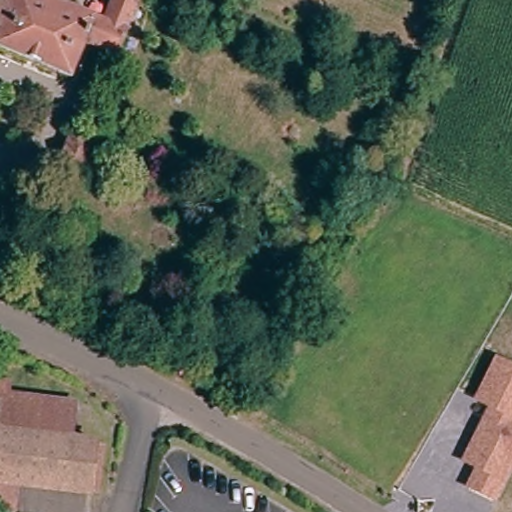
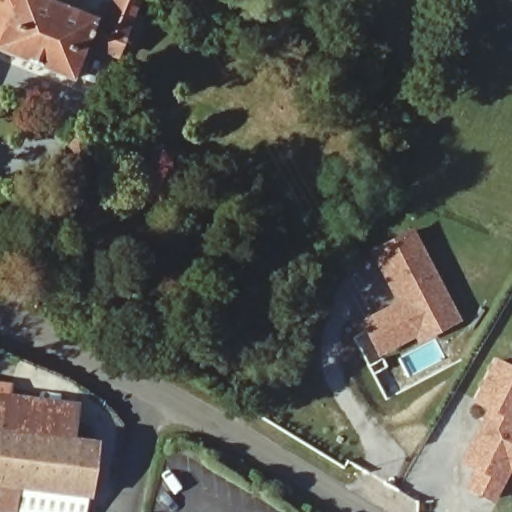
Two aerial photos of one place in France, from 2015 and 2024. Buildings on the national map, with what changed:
unchanged [(135,3),(115,56),(84,43),(71,80),(0,50),(0,0),(46,0),(104,24),(114,0),(128,0),(135,3)]
unchanged [(58,176),(69,146),(77,149),(91,155),(80,186),(58,176)]
new [(465,320),(420,344),(417,338),(382,358),(360,319),(396,303),(368,250),(415,226),(465,320)]
unchanged [(462,463),(486,408),(475,402),(495,360),(512,368),(512,474),(497,503),(467,487),(475,473),(462,463)]
unchanged [(7,383),(7,392),(72,401),(68,438),(97,441),(93,498),(0,490),(0,382),(7,383)]
unchanged [(0,512),(0,490),(93,498),(92,512),(0,512)]

